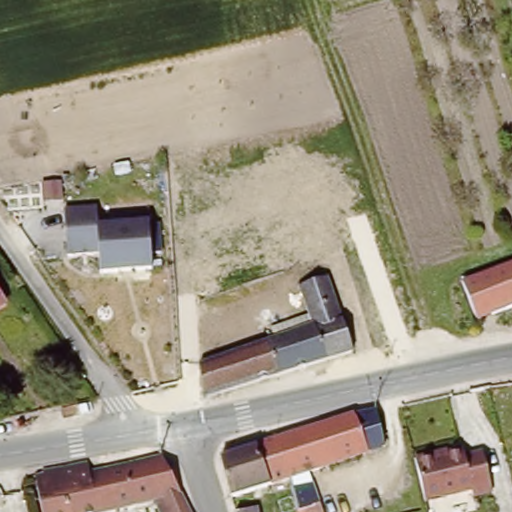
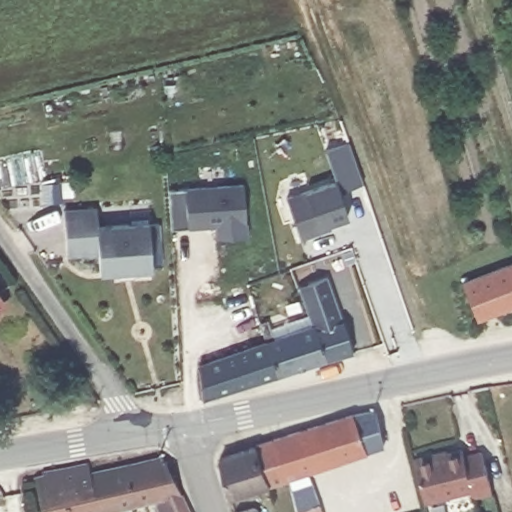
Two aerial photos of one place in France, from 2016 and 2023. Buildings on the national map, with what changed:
new [(338,184),(350,219),(320,229),(322,234),(301,240),(288,200),(338,184)]
new [(245,186),(249,239),(218,240),(217,224),(210,225),(207,229),(173,231),(171,191),(245,186)]
unchanged [(149,266),(97,270),(96,250),(64,252),(61,207),(94,205),(94,224),(145,220),(149,266)]
new [(320,229),(330,225),(332,230),(322,234),(320,229)]
unchanged [(460,285),(512,266),(512,309),(472,323),(460,285)]
unchanged [(201,366),(315,330),(300,289),(328,279),(354,353),(203,400),(201,366)]
unchanged [(7,303),(0,308),(0,293),(7,303)]
unchanged [(283,482),(272,441),(345,418),(374,415),(375,415),(383,450),(308,476),(319,512),(292,512),(284,483),(283,482)]
unchanged [(227,501),(217,460),(253,450),(253,447),(272,441),(283,482),(227,501)]
unchanged [(482,454),(491,497),(475,501),(472,495),(422,505),(413,460),(482,454)]
unchanged [(89,477),(162,463),(188,508),(190,512),(159,512),(156,505),(127,512),(41,512),(34,480),(33,477),(87,468),(89,477)]

